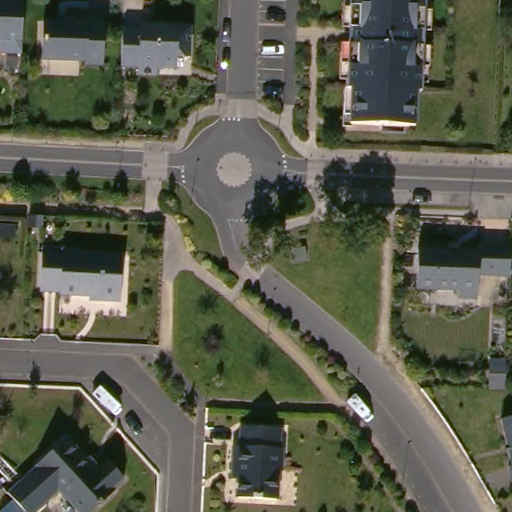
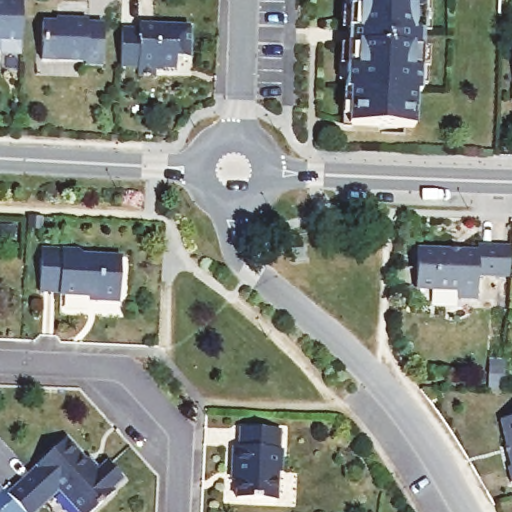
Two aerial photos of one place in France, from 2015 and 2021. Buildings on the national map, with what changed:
unchanged [(21,51),(1,51),(1,46),(0,46),(0,0),(22,0),(21,51)]
unchanged [(419,92),(413,92),(412,127),(347,125),(349,90),(344,90),(347,0),(423,0),(419,92)]
unchanged [(69,20),(69,16),(87,16),(87,20),(103,20),(102,61),(85,61),(85,58),(41,58),(42,19),(69,20)]
unchanged [(176,59),(175,69),(155,69),(155,76),(137,76),(137,68),(120,68),(121,31),(138,31),(138,26),(189,27),(188,51),(188,59),(176,59)]
unchanged [(78,248),(82,252),(120,253),(118,298),(96,298),(96,294),(58,292),(58,290),(38,289),(40,247),(78,248)]
unchanged [(480,277),(480,301),(460,301),(460,293),(418,292),(420,251),(480,253),(480,247),(512,248),(512,263),(511,278),(480,277)]
unchanged [(487,350),(504,351),(503,384),(486,383),(487,350)]
unchanged [(512,417),(512,457),(503,419),(512,417)]
unchanged [(236,476),(237,464),(231,463),(232,443),(237,444),(238,424),(280,425),(279,445),(280,445),(279,468),(276,468),(275,496),(235,494),(236,476)]
unchanged [(14,492),(11,488),(39,461),(39,460),(70,431),(100,463),(110,453),(127,471),(117,481),(119,483),(88,512),(61,483),(31,510),(30,512),(5,512),(0,507),(0,506),(14,492)]
unchanged [(512,470),(511,466),(512,466),(512,470)]
unchanged [(5,482),(0,487),(0,477),(5,482)]

